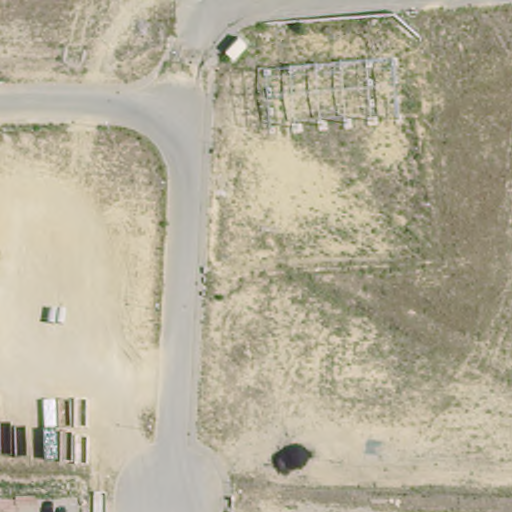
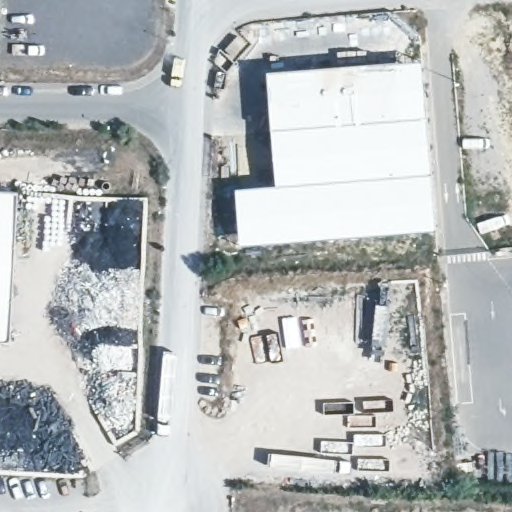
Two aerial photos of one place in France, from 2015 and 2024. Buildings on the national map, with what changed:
new [(397,121),(393,63),(419,61),(433,230),(238,246),(234,189),(274,185),(270,130),(397,121)]
new [(397,121),(270,130),(266,73),(393,63),(397,121)]
new [(8,341),(0,341),(0,192),(17,193),(8,341)]

